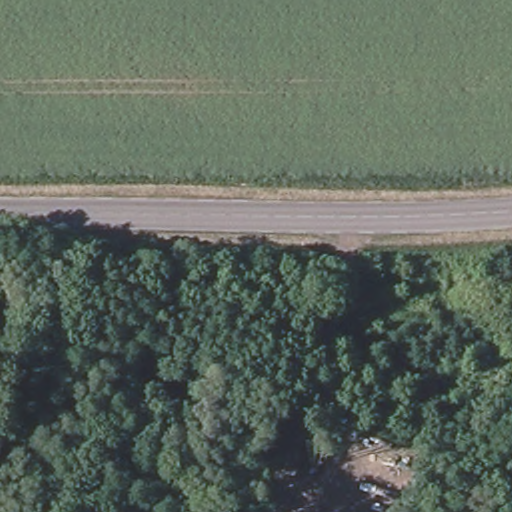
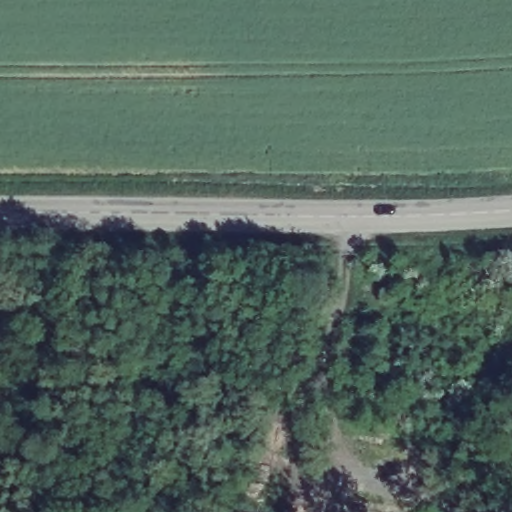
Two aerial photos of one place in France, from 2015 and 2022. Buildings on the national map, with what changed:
unchanged [(4,496),(0,512),(0,495),(4,496)]

